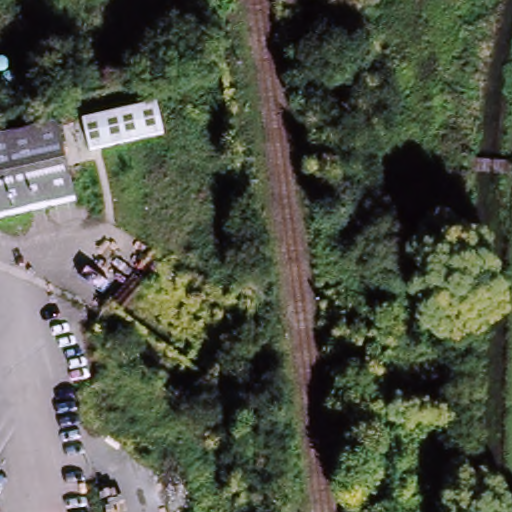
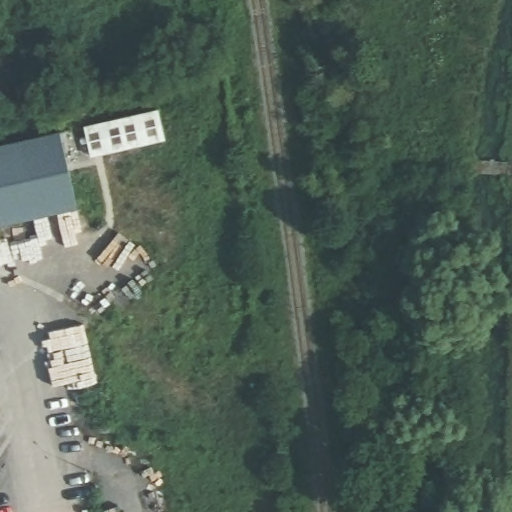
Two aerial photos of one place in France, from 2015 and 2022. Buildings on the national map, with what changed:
unchanged [(161,117),(167,146),(95,162),(89,132),(161,117)]
unchanged [(65,134),(80,207),(0,225),(0,148),(3,147),(34,141),(65,134)]

